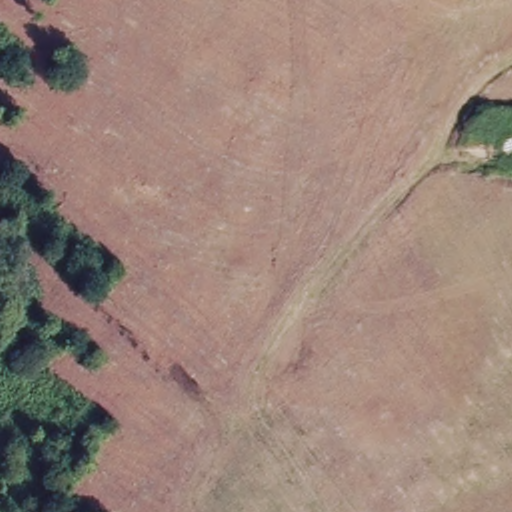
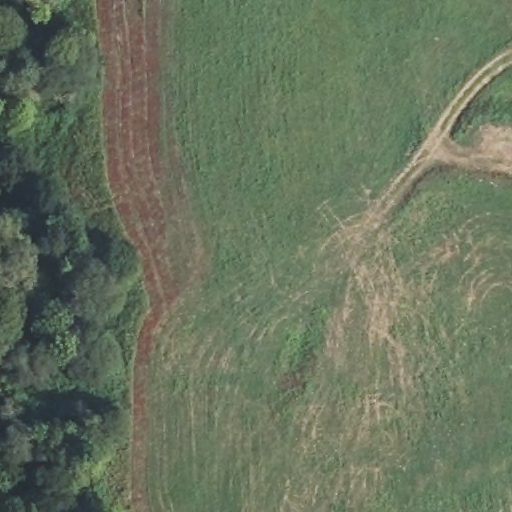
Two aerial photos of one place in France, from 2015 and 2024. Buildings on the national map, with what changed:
unchanged [(512,127),(512,162),(497,160),(500,125),(512,127)]

